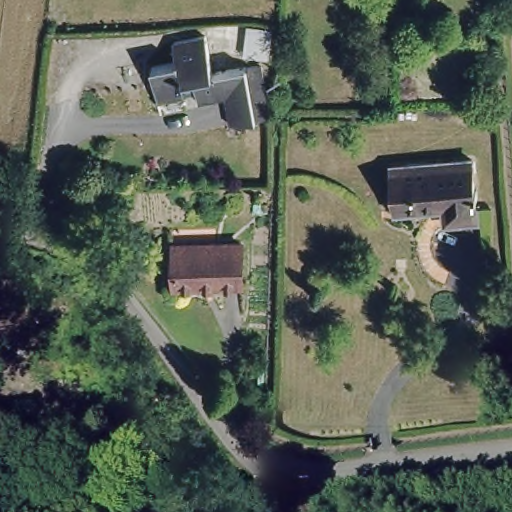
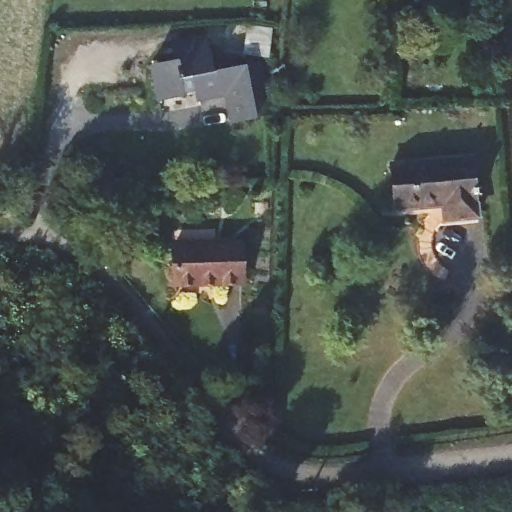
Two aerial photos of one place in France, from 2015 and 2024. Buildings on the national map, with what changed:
unchanged [(183,86),(184,86),(157,91),(151,60),(176,54),(172,36),(205,29),(212,65),(246,59),(246,60),(259,58),(269,109),(256,111),(257,112),(230,117),(225,89),(197,94),(196,83),(183,86)]
unchanged [(445,219),(443,204),(394,209),(390,164),(471,158),(475,217),(445,219)]
unchanged [(243,278),(175,279),(174,239),(242,238),(243,278)]

